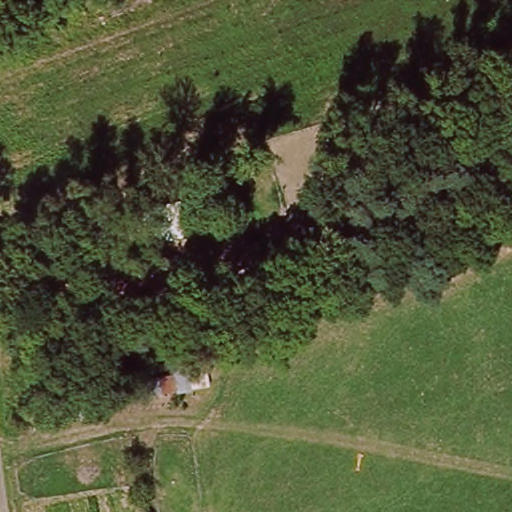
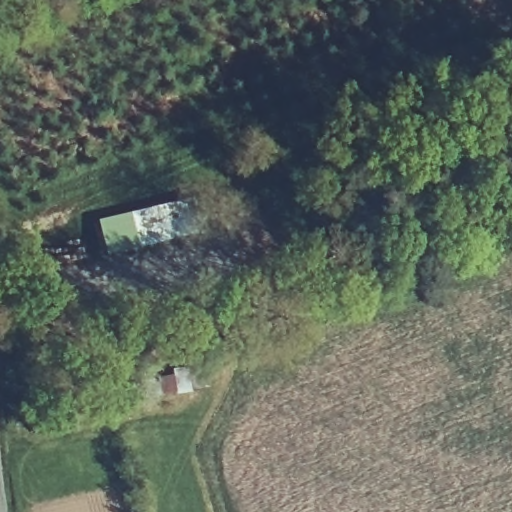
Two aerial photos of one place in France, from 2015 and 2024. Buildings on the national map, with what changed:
new [(191,199),(200,235),(108,256),(99,221),(191,199)]

